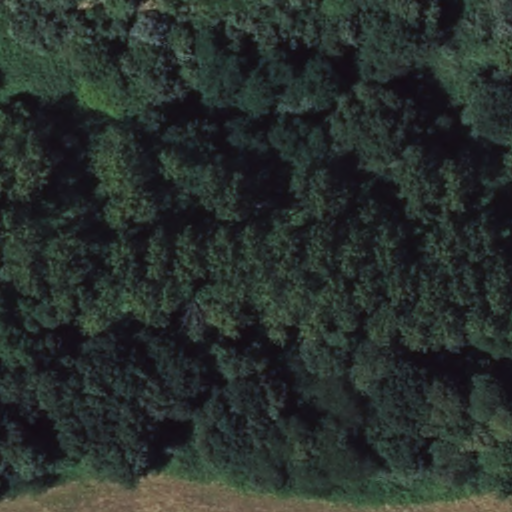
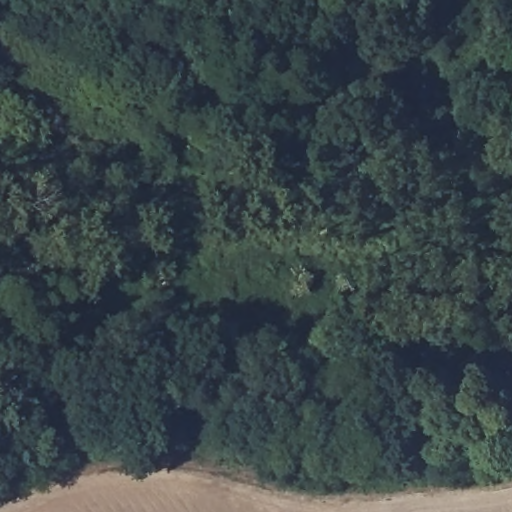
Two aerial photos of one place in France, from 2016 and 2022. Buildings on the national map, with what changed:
[]

